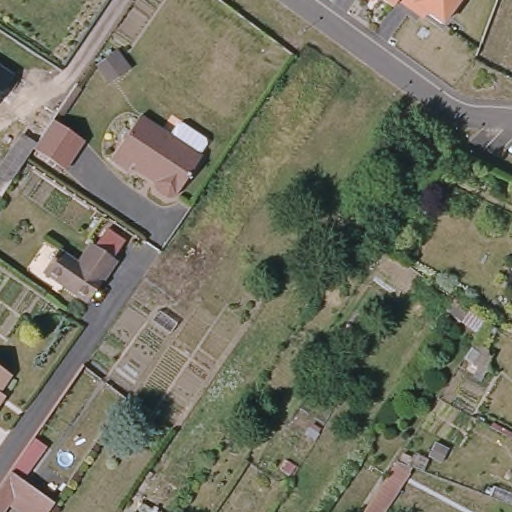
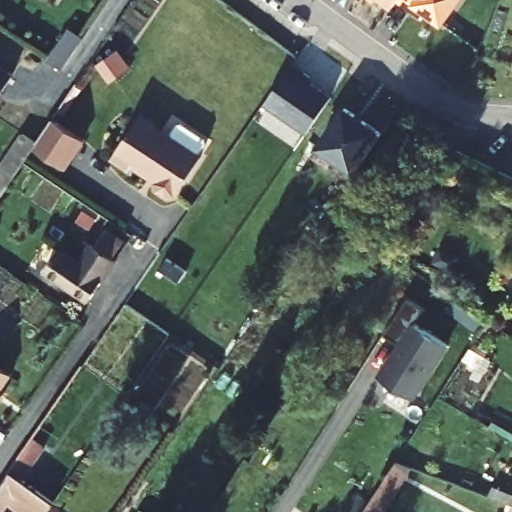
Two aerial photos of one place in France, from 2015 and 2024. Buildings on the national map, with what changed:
unchanged [(392,6),(384,0),(397,0),(392,6)]
unchanged [(443,24),(418,6),(415,11),(398,0),(460,0),(443,24)]
unchanged [(113,52),(125,68),(109,80),(97,64),(113,52)]
new [(291,62),(310,75),(307,79),(330,95),(307,130),(264,101),(291,62)]
unchanged [(9,76),(0,90),(0,70),(9,76)]
unchanged [(62,73),(77,83),(52,119),(37,141),(35,145),(33,148),(25,160),(2,193),(0,192),(0,166),(23,131),(62,73)]
new [(344,106),(382,130),(355,169),(317,144),(344,106)]
unchanged [(197,160),(172,196),(163,198),(153,191),(152,182),(130,166),(127,171),(109,159),(137,118),(167,139),(175,128),(180,127),(202,143),(202,147),(195,158),(197,160)]
unchanged [(35,145),(37,141),(52,119),(83,140),(63,169),(33,148),(35,145)]
unchanged [(113,252),(85,294),(41,265),(55,244),(75,257),(89,235),(113,252)]
new [(402,342),(385,331),(409,295),(426,305),(417,320),(449,341),(414,396),(380,374),(402,342)]
unchanged [(7,372),(0,383),(0,367),(7,372)]
unchanged [(413,464),(382,512),(366,512),(400,459),(413,464)]
unchanged [(20,512),(7,503),(1,512),(0,512),(0,483),(10,469),(55,501),(48,512),(20,512)]

